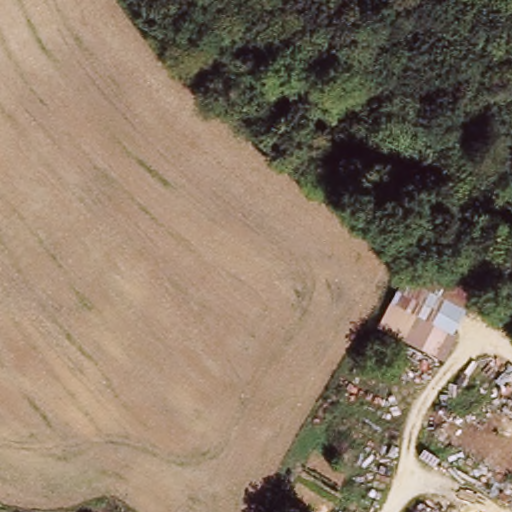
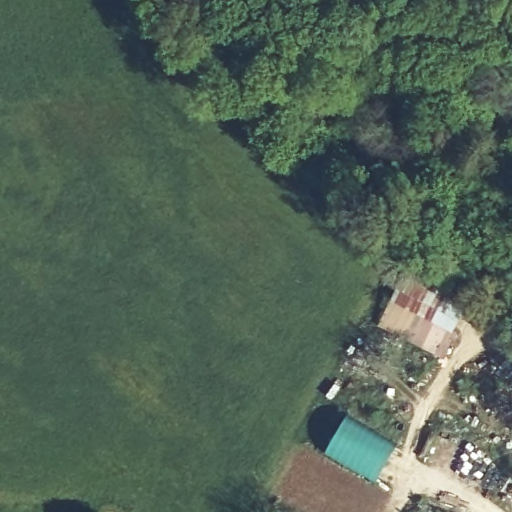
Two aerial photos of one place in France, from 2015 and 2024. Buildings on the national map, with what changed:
unchanged [(484,285),(475,309),(465,307),(439,351),(404,338),(377,324),(417,257),(484,285)]
new [(399,441),(377,481),(326,454),(348,414),(399,441)]

